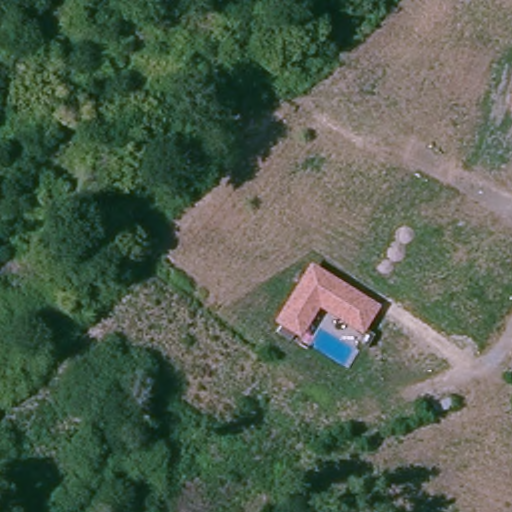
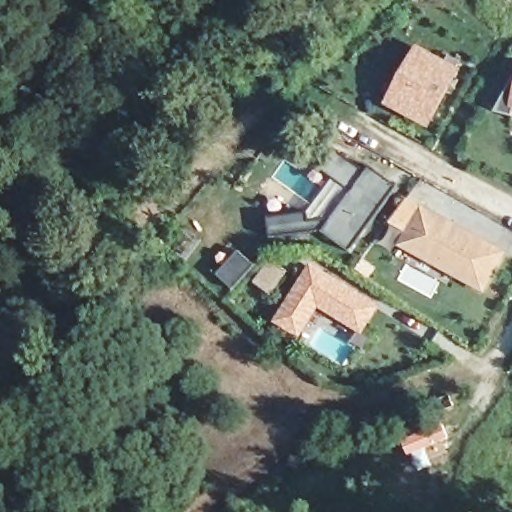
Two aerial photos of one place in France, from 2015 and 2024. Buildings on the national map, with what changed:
new [(462,69),(430,130),(383,105),(416,45),(462,69)]
unchanged [(512,104),(512,113),(510,112),(512,104)]
new [(365,170),(368,167),(397,186),(351,250),(324,231),(272,237),(271,219),(310,213),(312,221),(333,219),(352,192),(318,165),(333,147),(365,170)]
new [(508,253),(484,295),(397,246),(421,205),(508,253)]
unchanged [(381,305),(360,336),(318,310),(300,340),(274,323),(311,264),(381,305)]

